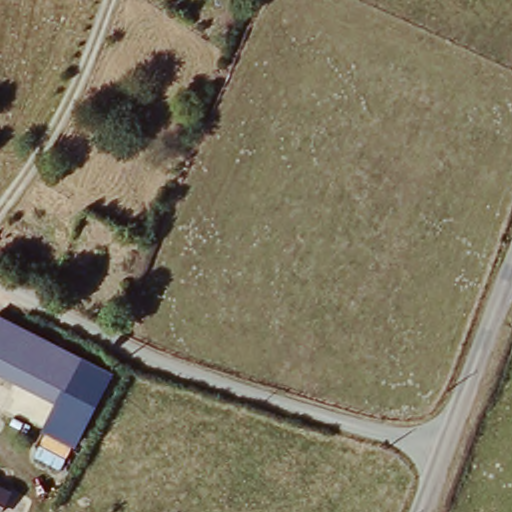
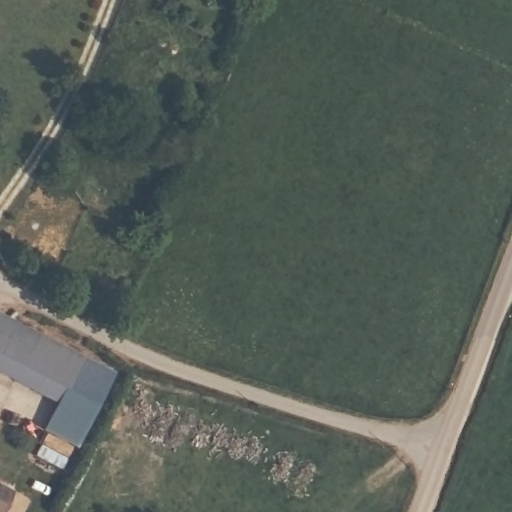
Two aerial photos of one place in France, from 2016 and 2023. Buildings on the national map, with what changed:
unchanged [(61,406),(0,375),(0,318),(85,360),(61,406)]
unchanged [(55,403),(61,406),(85,360),(112,373),(76,449),(41,431),(55,403)]
unchanged [(0,488),(12,495),(4,512),(0,512),(0,488)]

